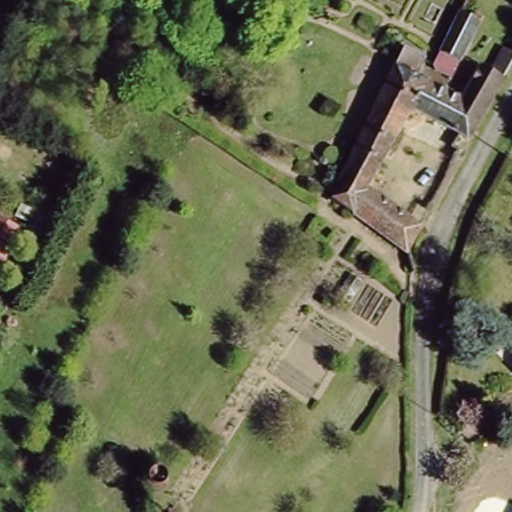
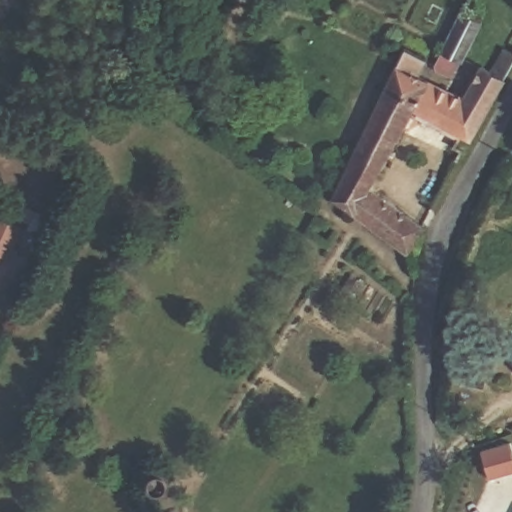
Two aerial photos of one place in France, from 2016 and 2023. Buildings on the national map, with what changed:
unchanged [(484,18),(451,79),(434,69),(468,0),(477,0),(472,12),(484,18)]
unchanged [(459,129),(411,105),(369,187),(422,227),(407,252),(331,196),(405,46),(425,57),(419,69),(417,74),(453,93),(464,99),(481,65),(491,71),(503,47),(507,49),(512,52),(512,61),(469,141),(457,133),(459,129)]
unchanged [(48,224),(36,249),(7,234),(18,208),(48,224)]
unchanged [(509,363),(512,361),(512,366),(509,363)]
new [(493,477),(485,450),(512,441),(512,471),(493,477)]

